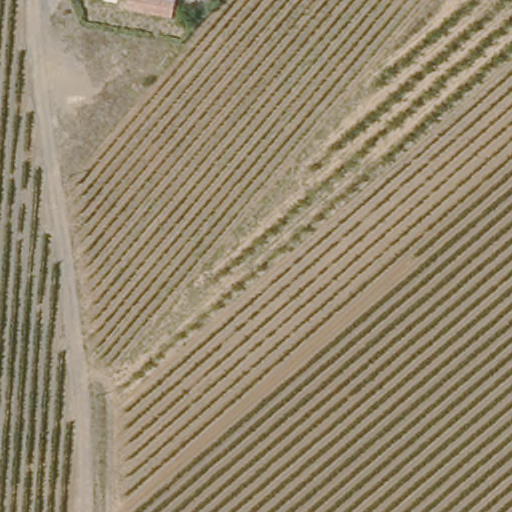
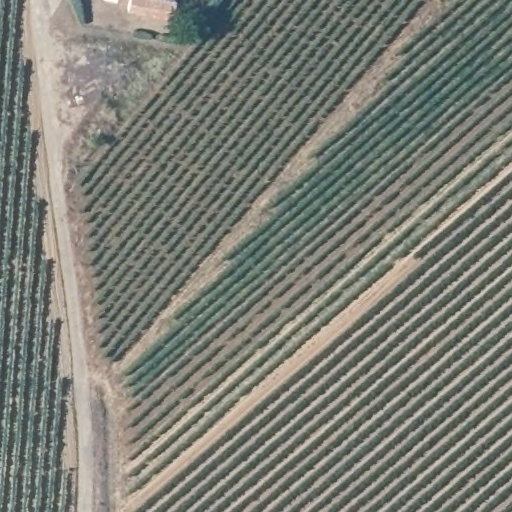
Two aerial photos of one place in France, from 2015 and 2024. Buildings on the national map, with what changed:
unchanged [(133,0),(179,0),(177,17),(133,7),(133,0)]

